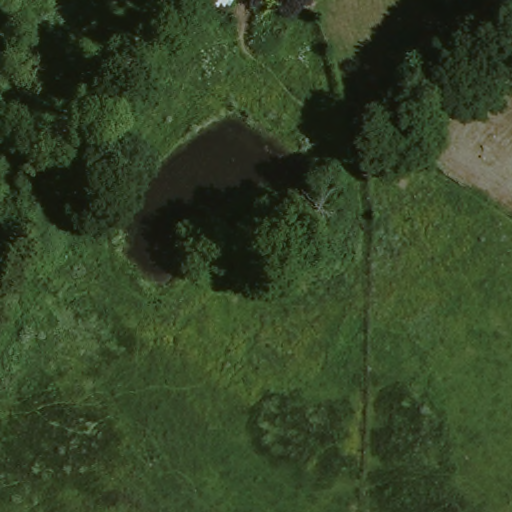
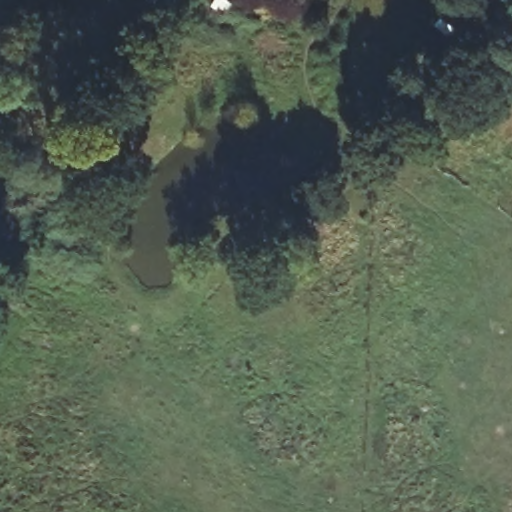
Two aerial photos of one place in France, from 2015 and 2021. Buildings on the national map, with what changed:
unchanged [(209,8),(213,0),(224,0),(229,3),(224,15),(209,8)]

